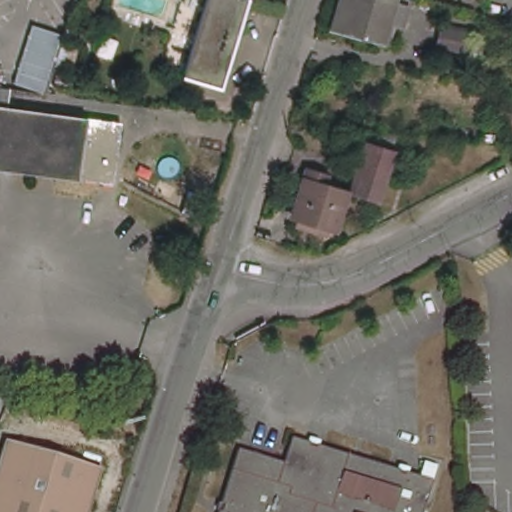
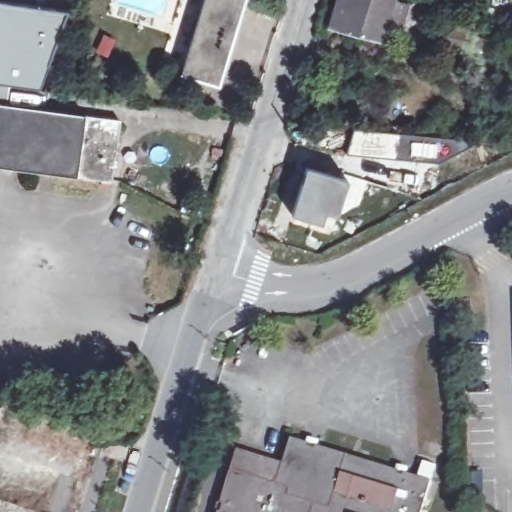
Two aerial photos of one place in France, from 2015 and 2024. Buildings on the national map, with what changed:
unchanged [(204,0),(242,0),(245,1),(218,89),(180,77),(204,0)]
unchanged [(327,27),(335,0),(391,0),(378,40),(327,27)]
unchanged [(473,32),(469,53),(435,45),(440,25),(473,32)]
unchanged [(90,180),(0,167),(0,107),(98,121),(90,180)]
unchanged [(364,142),(390,150),(375,197),(349,189),(364,142)]
unchanged [(290,224),(293,216),(288,214),(303,167),(322,174),(320,182),(341,189),(331,227),(326,226),(323,234),(290,224)]
unchanged [(286,462),(295,437),(433,483),(424,512),(219,512),(240,447),(286,462)]
demolished [(90,512),(0,512),(0,448),(2,441),(102,474),(90,512)]

